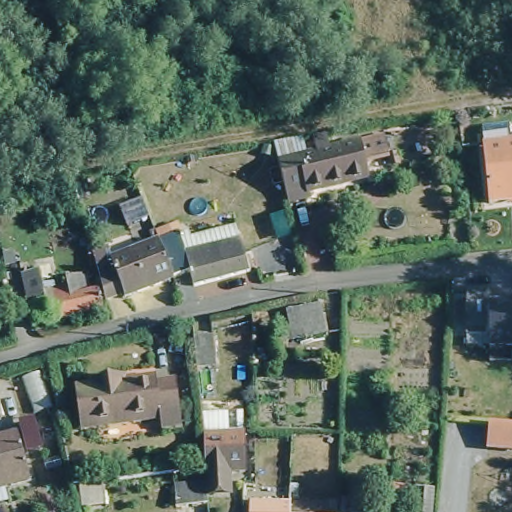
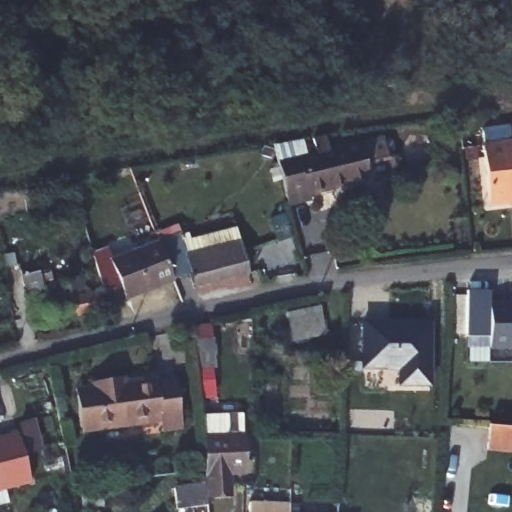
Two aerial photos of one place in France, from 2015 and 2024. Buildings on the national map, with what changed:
unchanged [(483,146),(482,130),(509,128),(510,144),(512,143),(512,203),(487,205),(482,146),(483,146)]
unchanged [(367,175),(308,190),(310,196),(287,202),(272,142),(302,137),(305,154),(359,140),(359,143),(387,135),(392,153),(395,165),(386,166),(384,155),(363,160),(367,175)]
unchanged [(68,229),(77,226),(85,256),(76,258),(68,229)]
unchanged [(177,227),(180,238),(188,235),(190,242),(236,229),(248,275),(193,290),(189,275),(172,281),(159,245),(155,236),(177,227)]
unchanged [(124,301),(122,297),(104,303),(92,263),(92,259),(107,254),(111,265),(159,245),(172,281),(124,301)]
unchanged [(65,281),(82,277),(86,295),(99,292),(102,314),(32,328),(22,276),(38,273),(49,271),(53,291),(67,288),(65,281)]
unchanged [(467,290),(490,291),(490,303),(512,303),(512,349),(491,349),(490,337),(466,338),(467,290)]
unchanged [(277,333),(289,330),(285,315),(319,308),(324,335),(279,346),(277,333)]
new [(400,389),(400,372),(364,371),(361,321),(432,322),(432,389),(400,389)]
unchanged [(193,341),(212,340),(215,369),(196,370),(193,341)]
unchanged [(75,401),(74,391),(90,389),(90,384),(114,381),(117,380),(125,379),(126,383),(155,380),(155,385),(174,382),(182,431),(160,435),(159,425),(115,430),(97,433),(80,435),(79,425),(75,401)]
unchanged [(199,402),(212,401),(215,422),(202,423),(199,402)]
new [(488,425),(512,427),(512,455),(485,452),(488,425)]
unchanged [(30,483),(0,491),(0,440),(17,435),(30,483)]
unchanged [(242,437),(243,475),(229,475),(230,495),(207,497),(205,468),(204,439),(242,437)]
unchanged [(175,510),(173,488),(190,486),(190,477),(204,476),(205,485),(207,506),(175,510)]
unchanged [(390,487),(411,490),(410,495),(389,493),(390,487)]
unchanged [(434,491),(432,512),(422,512),(424,490),(434,491)]
unchanged [(322,504),(305,505),(305,502),(284,502),(283,495),(322,493),(322,497),(327,497),(327,501),(322,501),(322,504)]
unchanged [(340,512),(341,500),(355,502),(355,508),(359,510),(360,503),(375,506),(390,507),(390,512),(340,512)]
unchanged [(289,504),(288,512),(247,512),(247,503),(276,505),(283,505),(289,504)]

